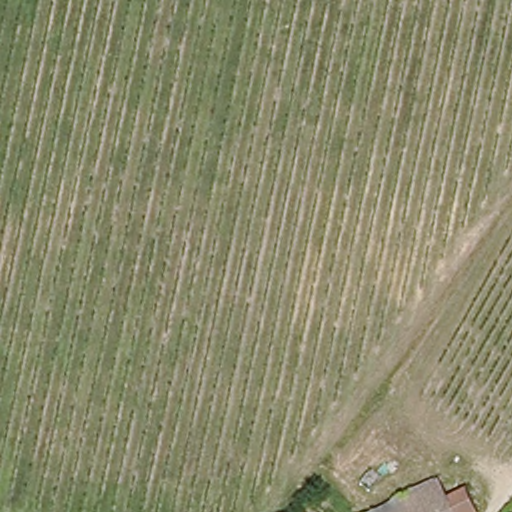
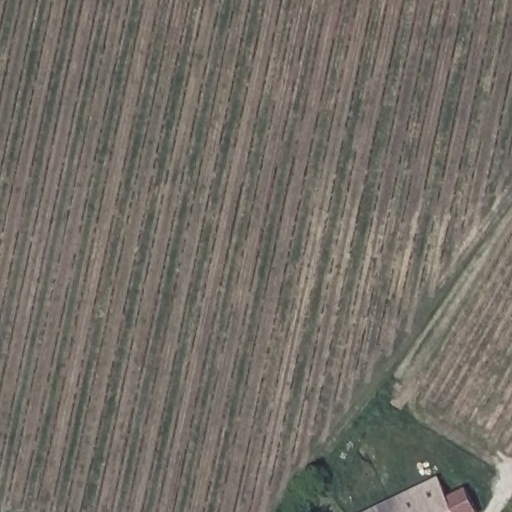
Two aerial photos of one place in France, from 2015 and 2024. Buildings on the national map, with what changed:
unchanged [(467,490),(480,512),(380,512),(436,482),(446,500),(467,490)]

